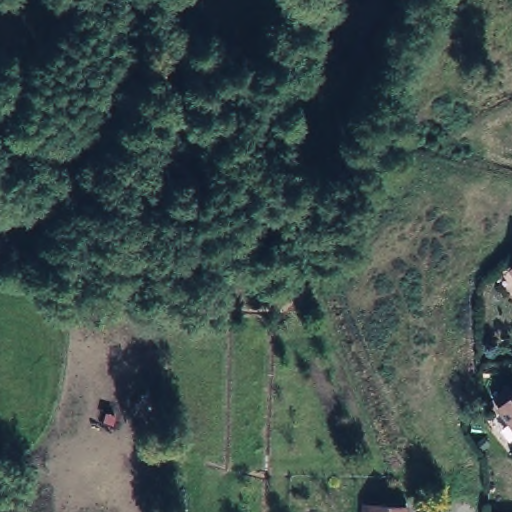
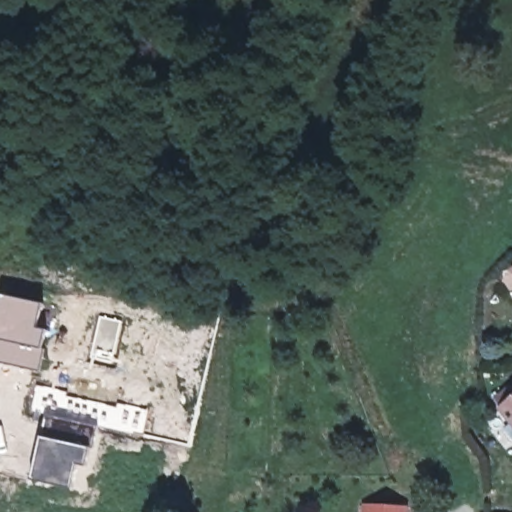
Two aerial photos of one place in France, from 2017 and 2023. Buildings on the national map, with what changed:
unchanged [(509,268),(512,266),(512,272),(509,268)]
new [(44,305),(37,329),(45,331),(40,350),(43,350),(37,373),(0,362),(0,307),(4,293),(44,305)]
unchanged [(497,412),(512,399),(512,431),(497,412)]
new [(91,453),(88,452),(83,470),(75,468),(68,492),(28,481),(35,455),(47,416),(57,420),(97,431),(91,453)]

